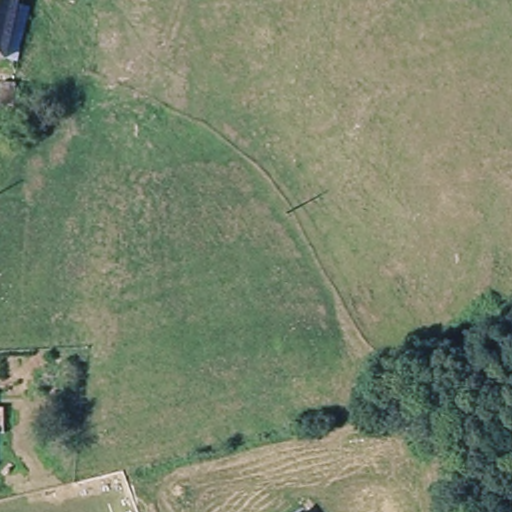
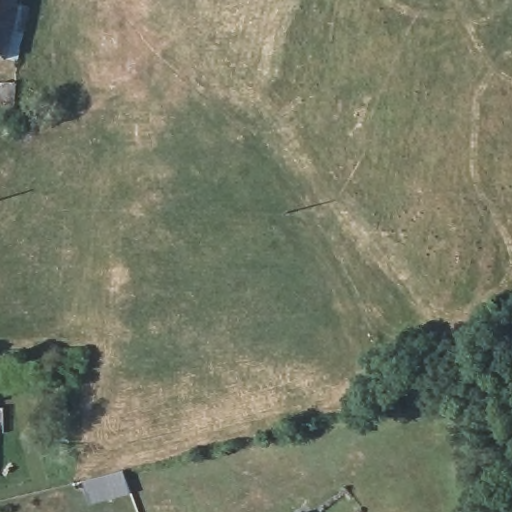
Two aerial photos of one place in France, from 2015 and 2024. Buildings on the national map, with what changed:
unchanged [(10,39),(19,39),(17,55),(0,52),(0,0),(15,0),(10,39)]
unchanged [(3,411),(2,438),(0,438),(0,411),(3,411)]
unchanged [(307,512),(303,512),(306,510),(307,512)]

